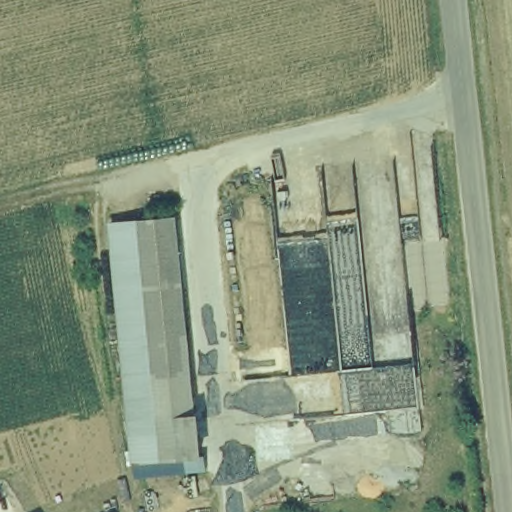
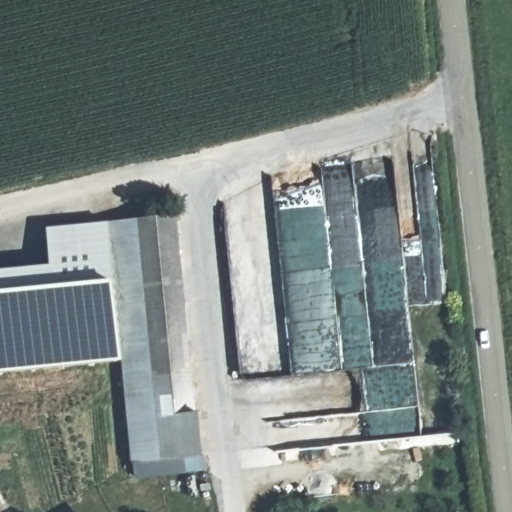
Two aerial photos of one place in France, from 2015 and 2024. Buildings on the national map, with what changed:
unchanged [(200,457),(208,456),(208,474),(188,476),(134,480),(132,464),(122,360),(110,223),(181,216),(200,457)]
new [(0,372),(0,267),(50,262),(48,229),(110,223),(122,360),(0,372)]

